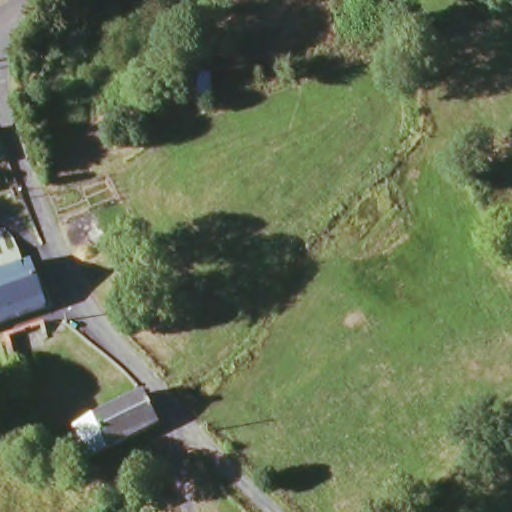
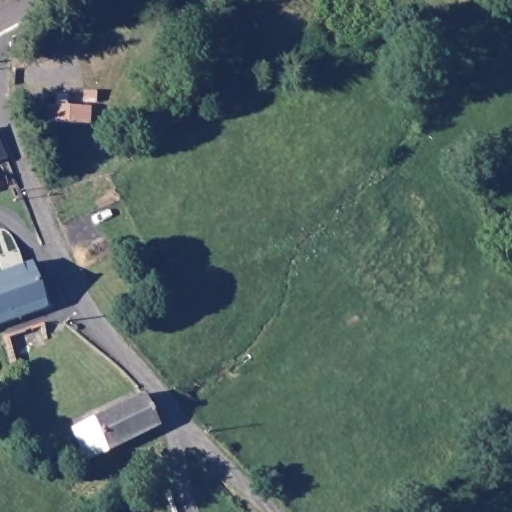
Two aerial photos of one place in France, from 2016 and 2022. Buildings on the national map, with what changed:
unchanged [(210,102),(187,104),(188,75),(210,75),(210,102)]
unchanged [(11,161),(0,166),(0,135),(11,161)]
unchanged [(0,194),(0,189),(1,193),(0,194)]
unchanged [(48,312),(0,327),(0,277),(22,271),(32,268),(48,312)]
unchanged [(166,435),(92,462),(81,430),(151,403),(166,435)]

